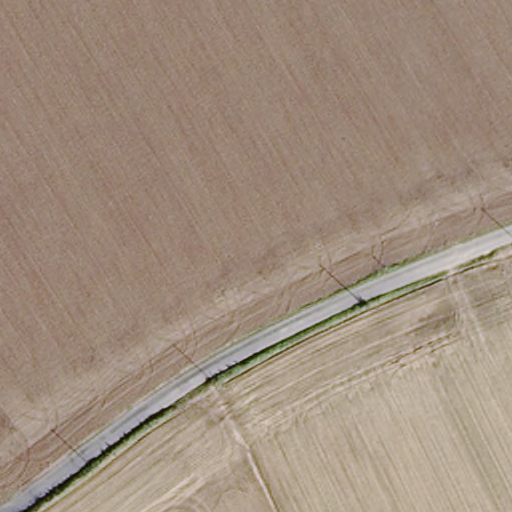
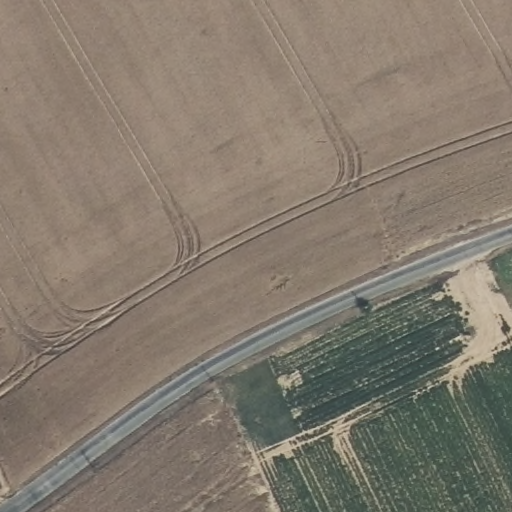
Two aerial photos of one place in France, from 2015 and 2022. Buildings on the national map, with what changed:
[]

